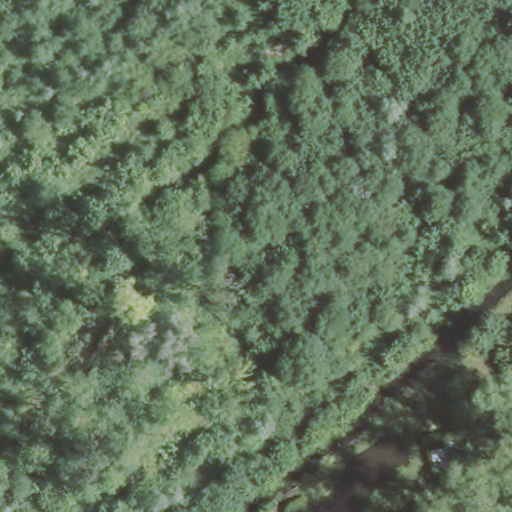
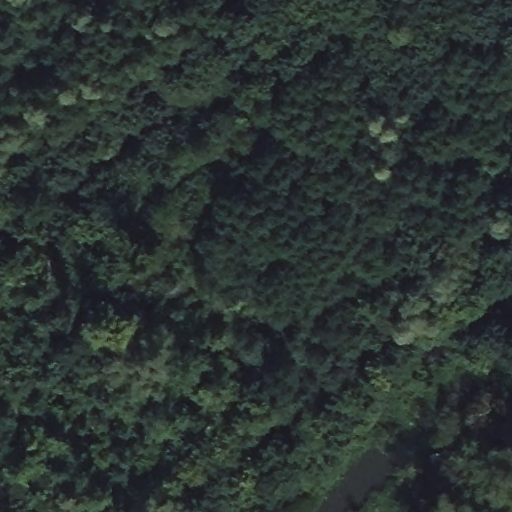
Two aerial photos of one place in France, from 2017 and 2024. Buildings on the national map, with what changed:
unchanged [(448,447),(447,438),(465,434),(470,472),(442,478),(435,455),(448,447)]

